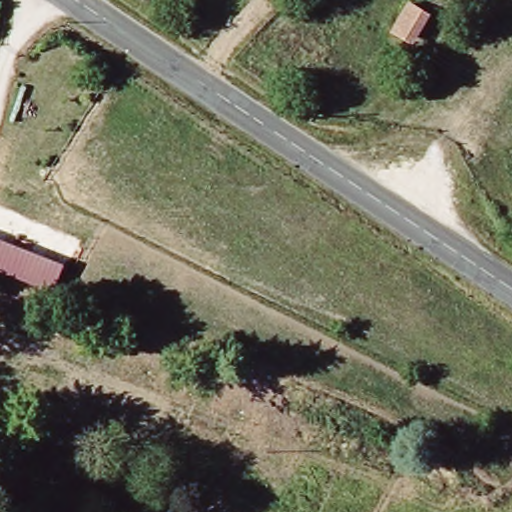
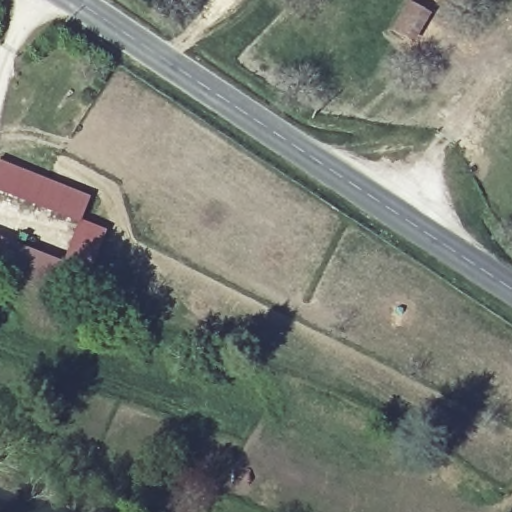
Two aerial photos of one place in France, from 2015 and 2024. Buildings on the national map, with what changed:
unchanged [(433,14),(413,47),(388,33),(407,0),(433,14)]
new [(79,225),(0,194),(0,163),(89,198),(79,225)]
unchanged [(65,265),(56,290),(0,270),(0,242),(65,265)]

